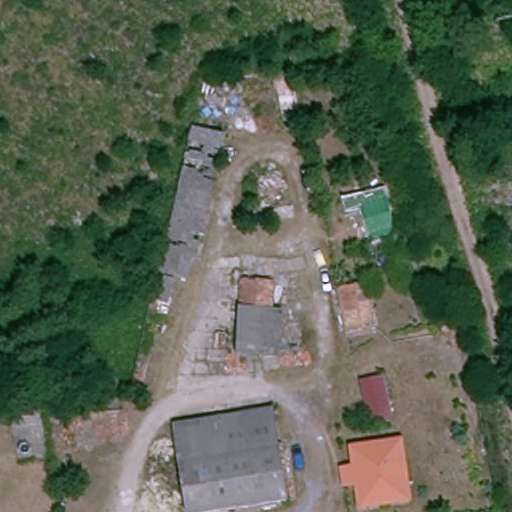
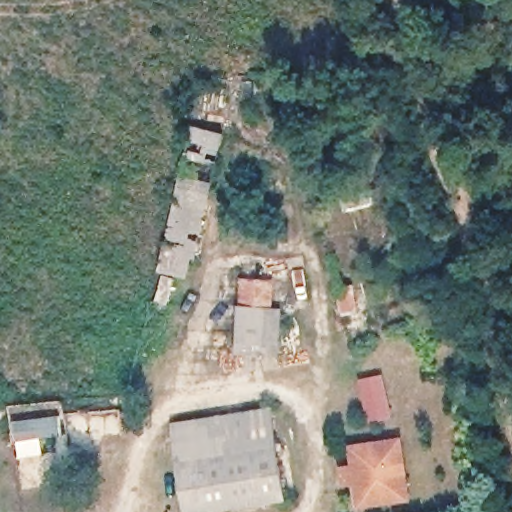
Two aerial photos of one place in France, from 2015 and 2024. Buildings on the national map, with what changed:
unchanged [(191,262),(190,276),(152,268),(184,127),(221,135),(198,262),(191,262)]
unchanged [(234,354),(240,277),(275,283),(271,310),(285,311),(280,359),(234,354)]
unchanged [(344,335),(336,289),(367,285),(379,331),(344,335)]
unchanged [(375,376),(378,392),(392,389),(401,423),(372,430),(361,382),(375,376)]
unchanged [(30,445),(16,446),(14,415),(27,413),(30,445)]
unchanged [(166,428),(274,414),(280,451),(171,466),(166,428)]
unchanged [(357,488),(346,491),(343,469),(353,467),(350,448),(405,440),(415,504),(370,512),(361,512),(357,488)]
unchanged [(285,503),(229,512),(179,512),(171,466),(280,451),(285,503)]

